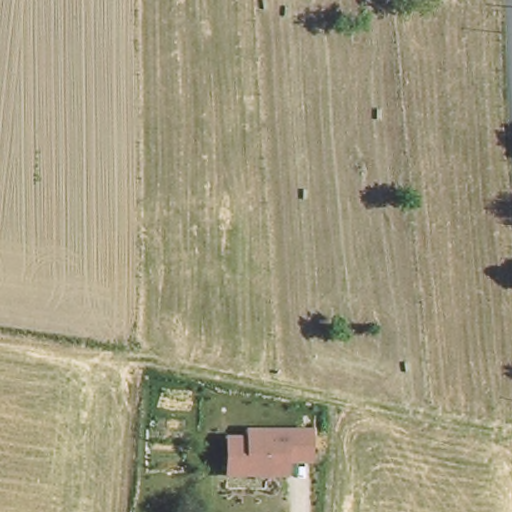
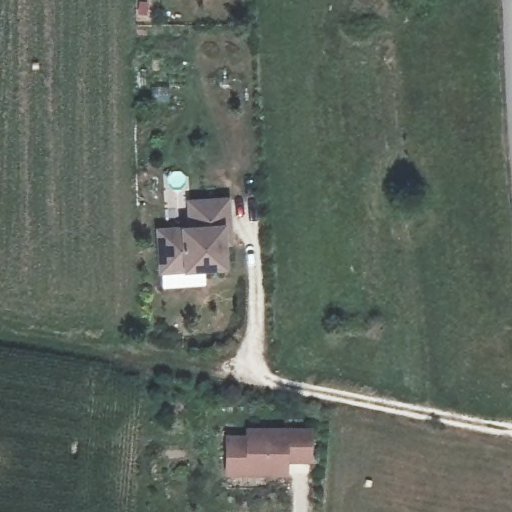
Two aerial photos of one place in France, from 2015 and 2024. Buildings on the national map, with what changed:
new [(192,226),(190,200),(228,197),(230,224),(223,225),(225,265),(205,266),(206,284),(162,286),(160,228),(192,226)]
unchanged [(313,464),(290,465),(290,476),(228,476),(227,434),(246,433),(246,427),(313,428),(313,464)]

